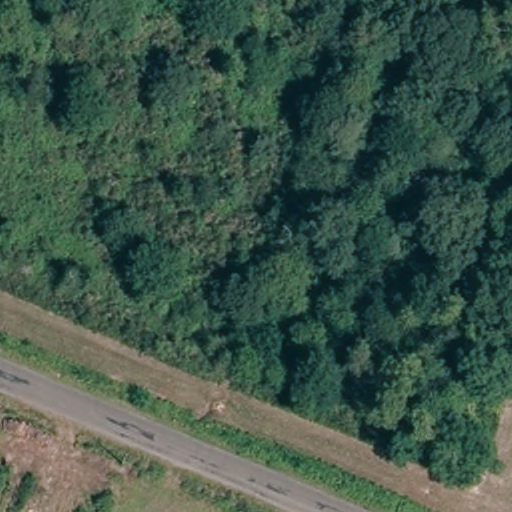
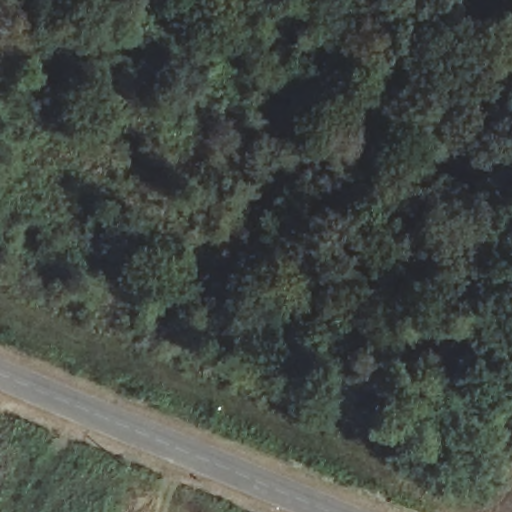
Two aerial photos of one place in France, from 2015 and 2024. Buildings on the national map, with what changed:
[]

